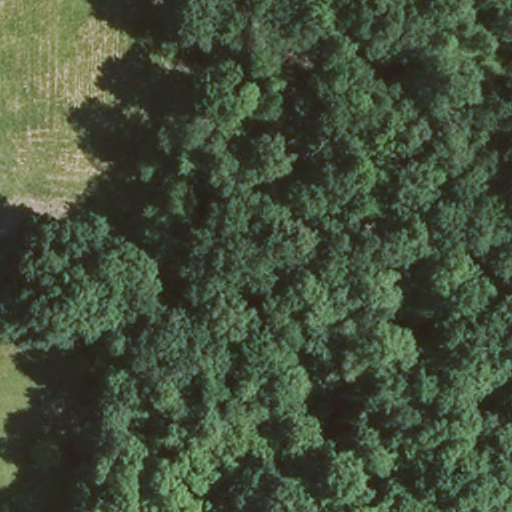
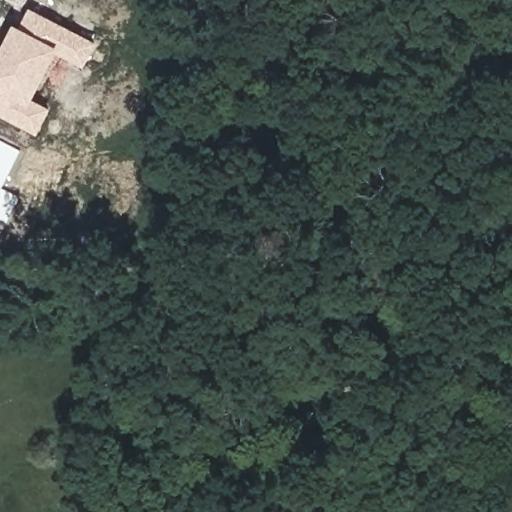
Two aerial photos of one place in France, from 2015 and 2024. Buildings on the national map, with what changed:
new [(85,67),(58,55),(34,100),(51,107),(39,133),(0,114),(0,54),(15,23),(21,26),(31,8),(99,42),(85,67)]
new [(20,197),(7,222),(0,218),(0,141),(20,151),(1,189),(20,197)]

